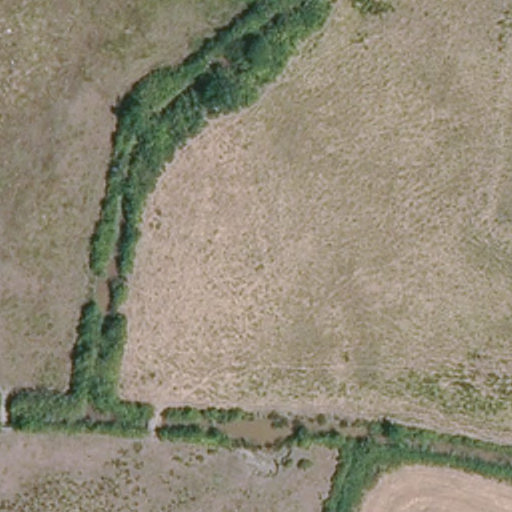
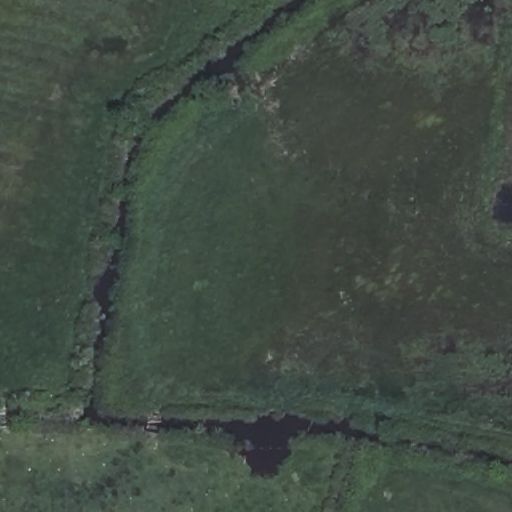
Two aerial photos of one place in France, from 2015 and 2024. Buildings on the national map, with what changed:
[]

